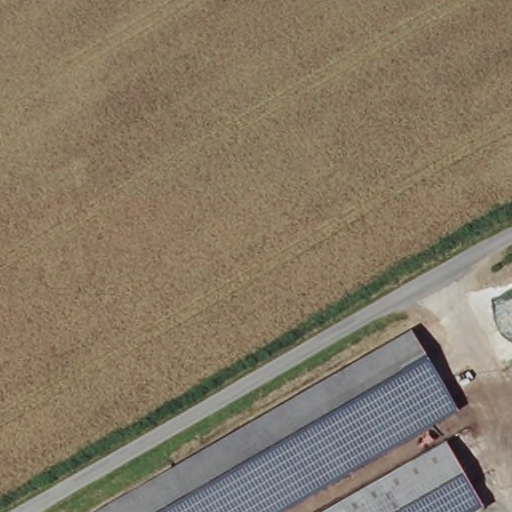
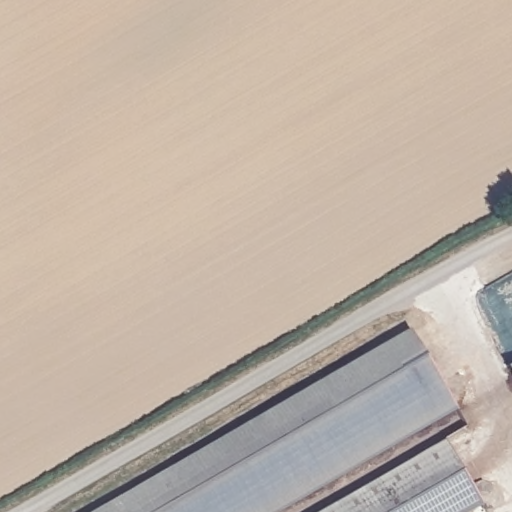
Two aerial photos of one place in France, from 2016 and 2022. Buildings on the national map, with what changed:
unchanged [(419,350),(147,512),(96,512),(406,327),(419,350)]
unchanged [(272,512),(147,512),(419,350),(452,405),(272,512)]
unchanged [(504,373),(512,368),(512,387),(504,373)]
unchanged [(313,512),(442,437),(472,489),(432,512),(313,512)]
unchanged [(463,512),(432,512),(472,489),(479,502),(463,512)]

